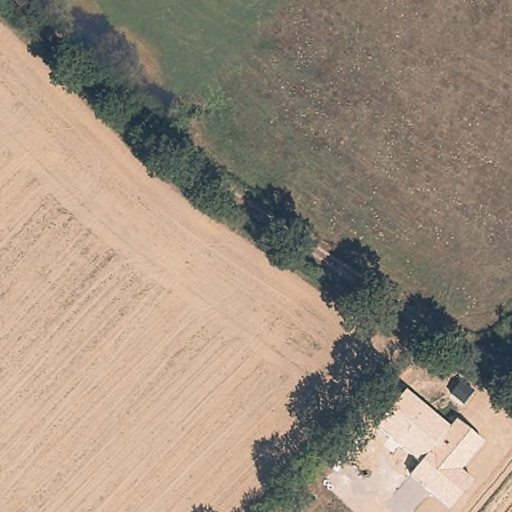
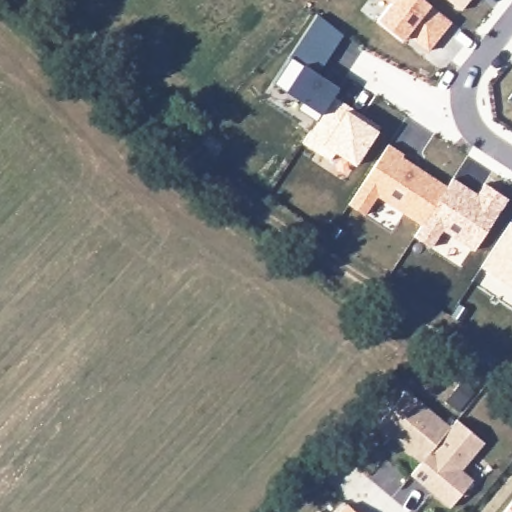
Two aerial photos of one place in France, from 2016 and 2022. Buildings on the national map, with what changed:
new [(382,0),(424,0),(430,4),(427,8),(450,22),(426,53),(403,39),(402,41),(375,21),(387,6),(382,0)]
new [(445,0),(471,0),(461,12),(445,0)]
new [(342,36),(315,73),(337,89),(330,100),(345,111),(377,131),(355,167),(334,154),(326,162),(300,144),(315,121),(296,109),(299,101),(285,92),(273,83),(315,16),(342,36)]
new [(512,104),(505,99),(512,91),(512,104)]
new [(386,144),(402,154),(401,157),(446,186),(451,178),(476,194),(483,184),(507,198),(475,251),(441,230),(430,248),(413,238),(420,227),(376,198),(363,218),(346,207),(386,144)]
new [(512,223),(512,290),(480,269),(510,222),(512,223)]
unchanged [(406,390),(450,425),(456,421),(483,443),(463,472),(471,479),(447,507),(411,477),(418,462),(373,425),(406,390)]
unchanged [(512,512),(504,512),(512,501),(512,512)]
unchanged [(345,504),(353,512),(337,512),(345,504)]

